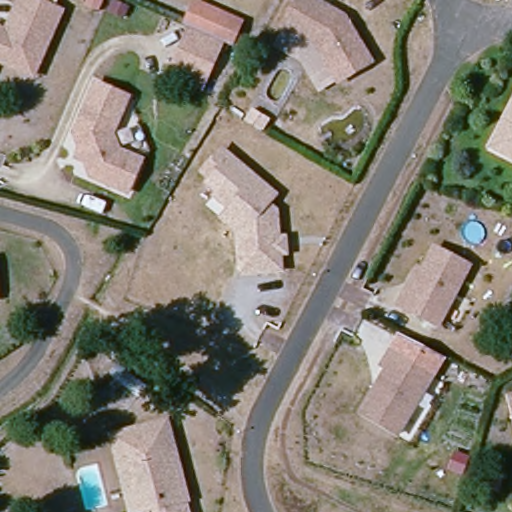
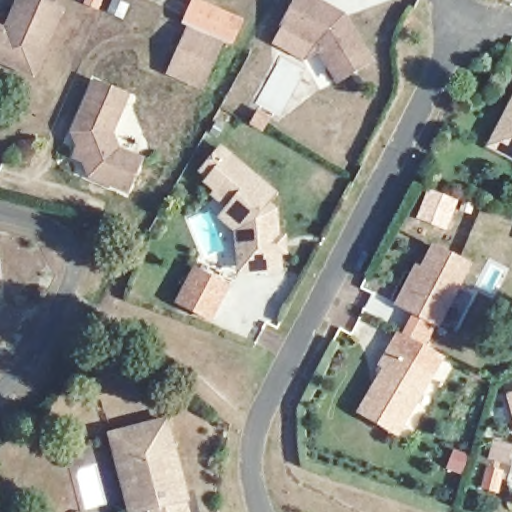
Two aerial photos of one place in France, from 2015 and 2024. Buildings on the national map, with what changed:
unchanged [(0,62),(0,29),(5,31),(7,27),(11,18),(19,0),(34,0),(60,12),(40,57),(31,76),(7,65),(0,62)]
unchanged [(335,81),(313,44),(281,24),(294,1),(295,0),(315,0),(342,16),(368,61),(335,81)]
unchanged [(195,2),(241,23),(229,45),(219,41),(207,35),(187,26),(183,24),(195,2)]
unchanged [(318,93),(298,60),(272,46),(281,24),(313,44),(335,81),(318,93)]
unchanged [(207,35),(219,41),(199,86),(167,71),(187,26),(207,35)]
unchanged [(75,146),(69,131),(92,81),(124,96),(109,130),(116,150),(137,159),(122,191),(86,175),(80,160),(71,155),(75,146)]
unchanged [(486,148),(492,136),(510,103),(512,98),(512,161),(486,148)]
unchanged [(238,257),(237,239),(236,233),(231,229),(239,220),(212,198),(216,194),(206,185),(209,181),(201,175),(221,152),(228,159),(273,197),(266,206),(275,213),(277,241),(283,240),(285,255),(278,256),(280,271),(263,273),(240,275),(238,257)]
unchanged [(467,268),(435,328),(396,308),(403,293),(415,270),(421,273),(432,251),(467,268)]
new [(212,323),(175,304),(194,266),(232,286),(212,323)]
unchanged [(388,355),(402,334),(445,357),(431,380),(388,355)]
unchanged [(431,380),(396,437),(357,415),(384,371),(380,369),(388,355),(431,380)]
unchanged [(508,394),(512,393),(512,407),(508,394)]
unchanged [(119,469),(111,437),(166,422),(175,454),(172,455),(176,472),(187,512),(146,512),(146,511),(142,512),(133,512),(127,485),(122,468),(119,469)]
unchanged [(512,482),(512,500),(501,497),(507,480),(512,482)]

